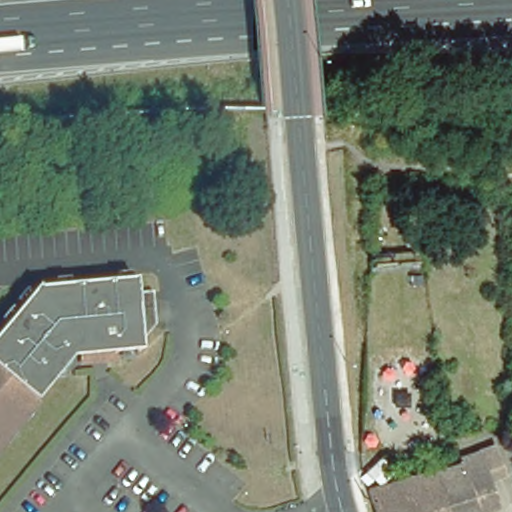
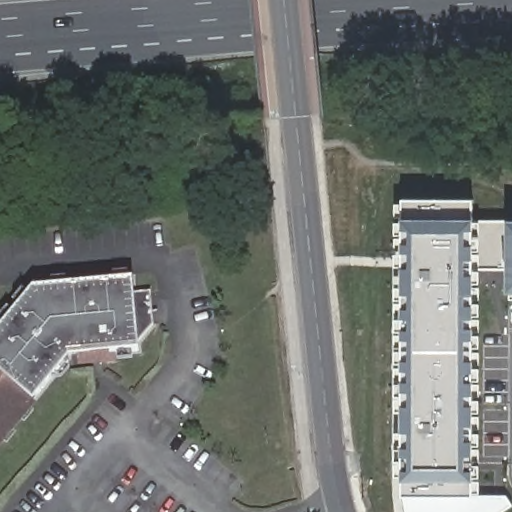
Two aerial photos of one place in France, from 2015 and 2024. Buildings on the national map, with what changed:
new [(473,269),(473,480),(471,480),(472,494),(506,495),(512,504),(512,507),(504,512),(406,512),(403,496),(401,496),(401,480),(401,219),(402,198),(473,199),(473,219),(506,219),(512,219),(512,292),(506,292),(507,270),(473,269)]
unchanged [(128,281),(129,294),(146,292),(150,326),(134,345),(135,351),(108,354),(108,359),(78,362),(77,354),(67,355),(64,358),(30,402),(0,437),(0,323),(27,290),(128,281)]
demolished [(461,463),(492,452),(503,480),(488,486),(496,509),(485,512),(446,512),(434,475),(451,471),(462,468),(461,463)]
demolished [(374,512),(369,495),(434,475),(446,512),(374,512)]

